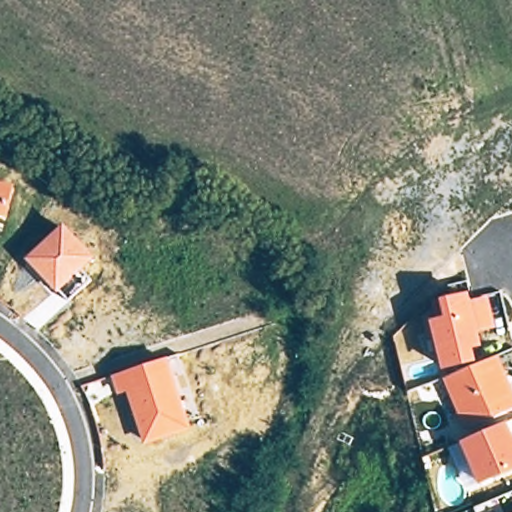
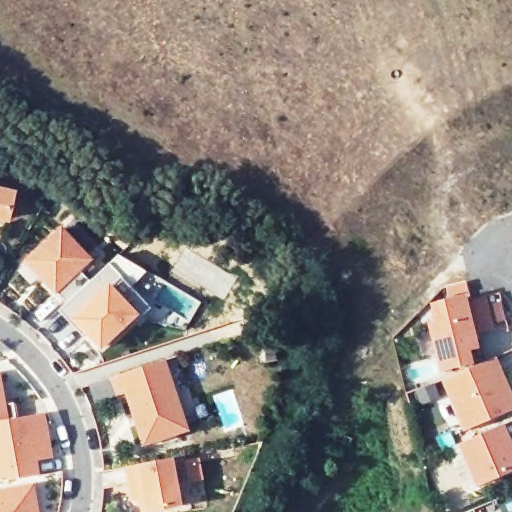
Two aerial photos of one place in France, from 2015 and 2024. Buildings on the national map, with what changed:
unchanged [(4,219),(0,218),(0,186),(11,189),(4,219)]
unchanged [(96,260),(85,270),(95,281),(72,303),(45,274),(33,261),(37,257),(68,229),(96,260)]
new [(151,308),(110,347),(109,345),(103,352),(71,320),(69,321),(59,311),(70,301),(72,303),(95,281),(93,279),(110,263),(151,308)]
unchanged [(497,327),(479,331),(482,345),(474,347),(477,361),(448,368),(437,324),(444,322),(439,304),(471,297),(473,305),(491,300),(497,327)]
unchanged [(499,358),(508,378),(512,387),(512,412),(471,430),(449,379),(493,360),(499,358)]
unchanged [(163,361),(186,430),(145,443),(128,390),(118,393),(113,377),(163,361)]
new [(13,403),(15,418),(0,421),(0,389),(3,405),(13,403)]
new [(34,458),(37,475),(13,480),(12,474),(0,476),(0,421),(15,418),(43,413),(50,455),(34,458)]
unchanged [(512,435),(512,472),(484,484),(466,443),(508,425),(512,435)]
new [(128,467),(173,458),(182,506),(144,512),(141,499),(134,501),(131,484),(128,467)]
new [(37,512),(0,512),(0,492),(32,487),(37,512)]

